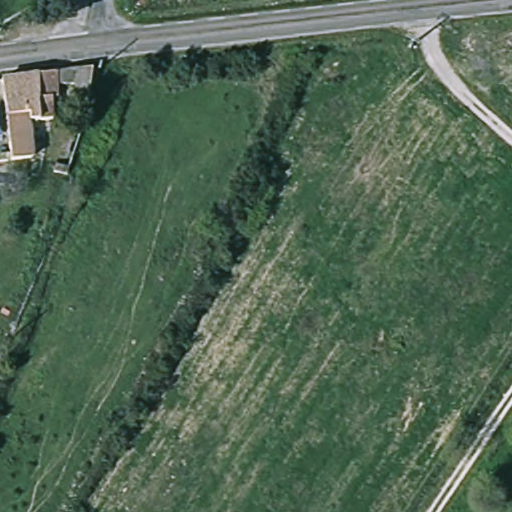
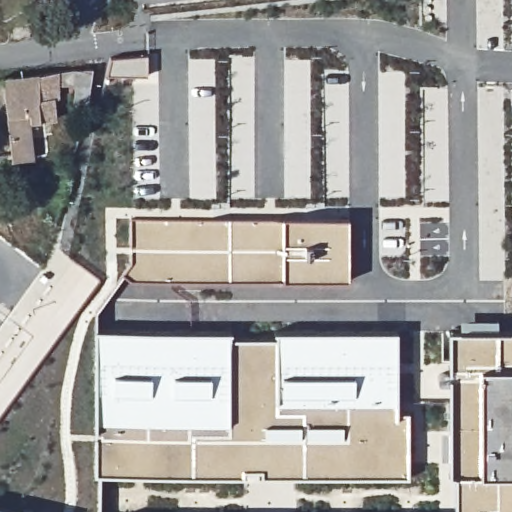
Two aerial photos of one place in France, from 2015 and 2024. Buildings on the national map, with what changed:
unchanged [(50,104),(54,125),(32,128),(25,129),(25,121),(7,124),(2,86),(57,79),(102,74),(100,94),(97,105),(80,106),(77,87),(58,89),(60,103),(50,104)]
unchanged [(37,165),(2,170),(0,161),(13,159),(7,124),(25,121),(25,129),(32,128),(37,165)]
new [(229,281),(130,281),(122,275),(132,262),(130,219),(230,219),(285,219),(348,219),(348,281),(282,281),(229,281)]
new [(455,477),(450,476),(449,373),(448,333),(460,333),(460,319),(498,320),(497,332),(512,332),(512,512),(455,512),(455,477)]
new [(408,478),(262,477),(262,469),(243,469),(243,478),(97,477),(96,426),(95,330),(230,332),(230,338),(277,339),(276,332),(397,331),(396,404),(396,413),(408,412),(408,478)]
new [(0,510),(8,512),(0,512),(0,510)]

